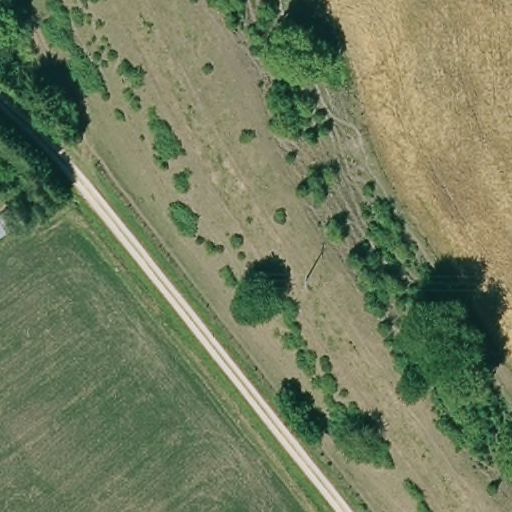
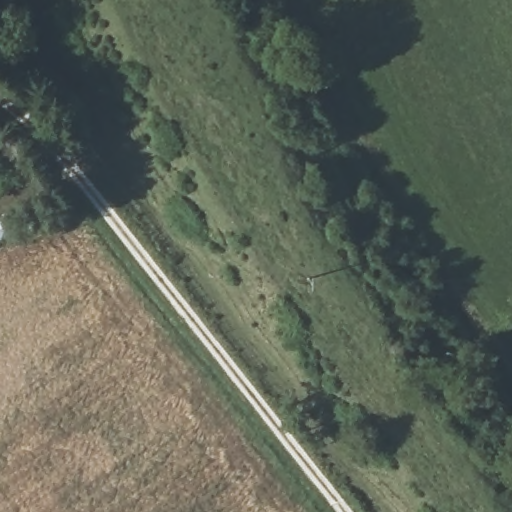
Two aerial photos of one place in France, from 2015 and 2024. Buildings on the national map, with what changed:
unchanged [(8,212),(16,229),(0,239),(0,217),(8,212)]

